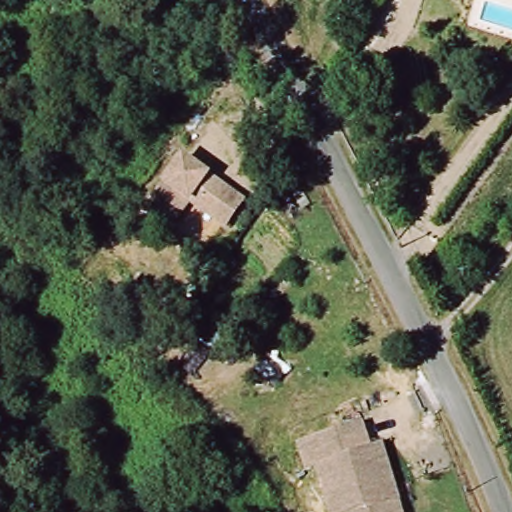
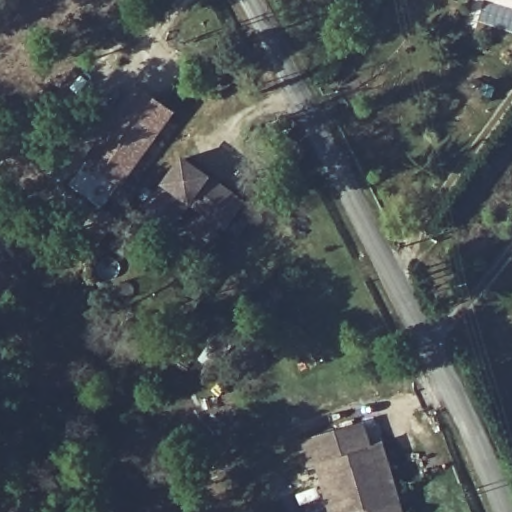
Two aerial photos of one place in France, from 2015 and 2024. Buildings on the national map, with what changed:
new [(139,88),(171,112),(119,184),(85,160),(139,88)]
unchanged [(175,224),(169,219),(150,207),(184,156),(234,189),(218,214),(197,200),(193,198),(175,224)]
unchanged [(404,512),(334,512),(319,466),(309,468),(302,442),(366,423),(372,444),(383,442),(404,512)]

